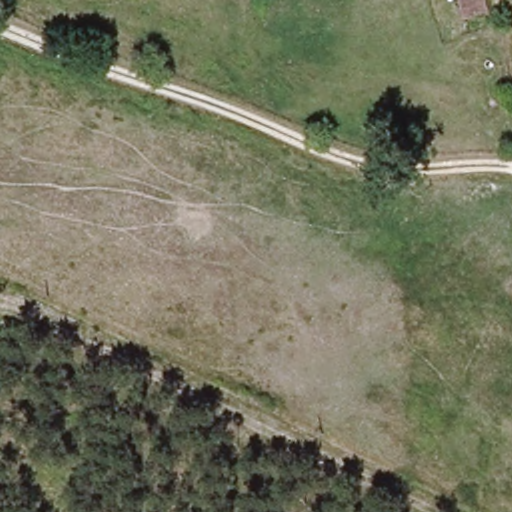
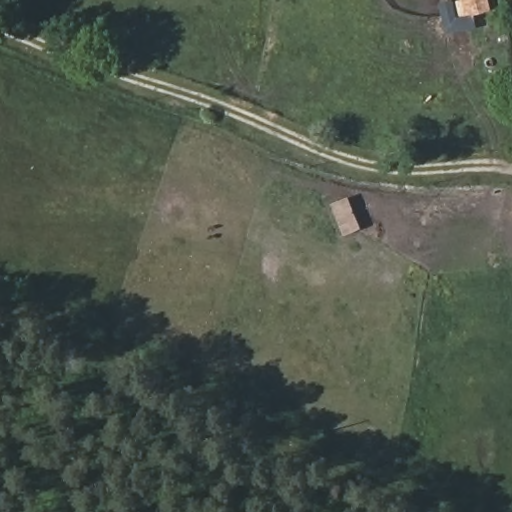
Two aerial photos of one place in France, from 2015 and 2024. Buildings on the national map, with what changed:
unchanged [(491,11),(467,16),(464,0),(489,0),(491,11)]

